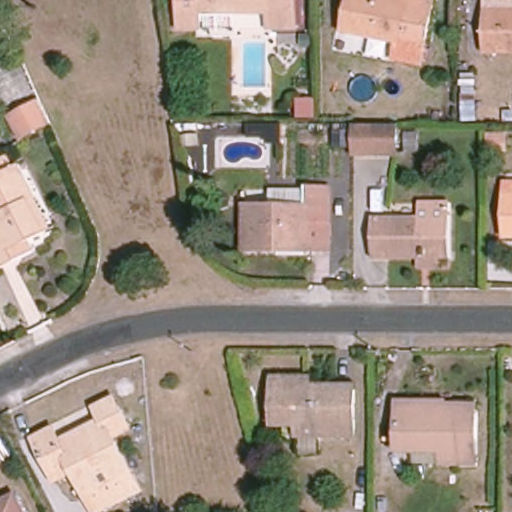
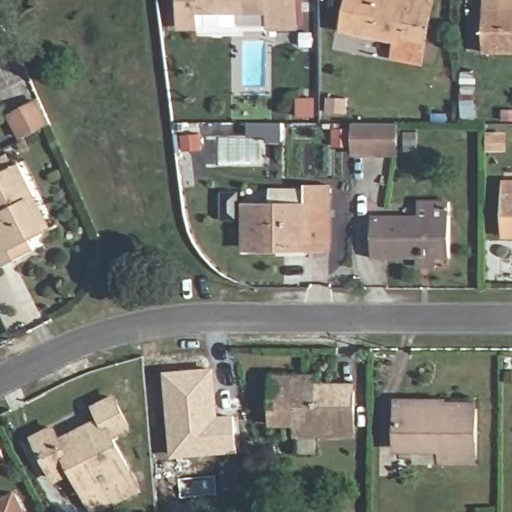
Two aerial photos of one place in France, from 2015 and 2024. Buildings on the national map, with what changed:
unchanged [(270,33),(270,18),(201,18),(200,33),(181,33),(181,0),(297,0),(297,33),(270,33)]
unchanged [(422,64),(394,58),(398,42),(342,30),(347,0),(411,0),(433,4),(422,64)]
unchanged [(484,53),(485,10),(512,10),(512,53),(484,53)]
unchanged [(464,120),(463,74),(476,74),(477,120),(464,120)]
unchanged [(23,139),(11,117),(38,103),(50,125),(23,139)]
unchanged [(384,125),(399,125),(398,155),(380,155),(354,155),(355,125),(380,125),(384,125)]
unchanged [(407,152),(407,130),(418,130),(418,152),(407,152)]
unchanged [(505,136),(504,149),(494,149),(495,135),(505,136)]
unchanged [(16,166),(21,164),(36,195),(31,198),(48,232),(14,249),(19,259),(1,269),(0,268),(0,159),(10,154),(16,166)]
unchanged [(506,236),(506,183),(512,183),(512,236),(506,236)]
unchanged [(279,255),(279,249),(246,249),(246,206),(307,207),(307,192),(329,192),(328,245),(307,245),(307,256),(279,255)]
unchanged [(451,203),(451,258),(373,257),(373,218),(421,218),(422,203),(451,203)]
new [(177,458),(169,371),(214,368),(218,416),(234,414),(237,453),(177,458)]
unchanged [(355,386),(356,435),(298,435),(299,424),(275,424),(274,378),(311,378),(311,385),(355,386)]
unchanged [(133,428),(114,438),(141,491),(100,512),(95,512),(74,472),(58,481),(36,439),(54,428),(61,441),(105,419),(98,407),(117,397),(133,428)]
unchanged [(476,406),(475,463),(445,463),(445,449),(400,449),(401,404),(476,406)]
unchanged [(0,503),(14,496),(22,512),(0,512),(0,503)]

